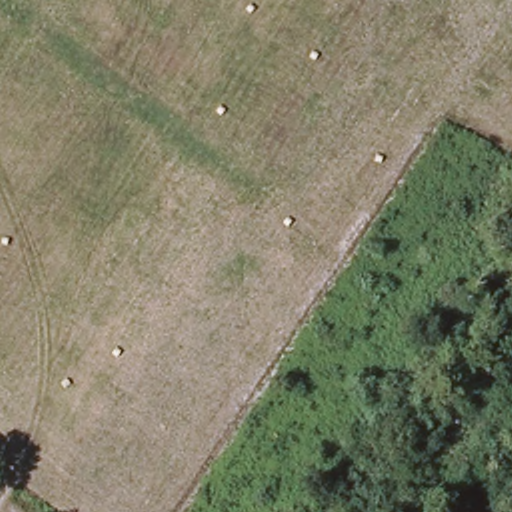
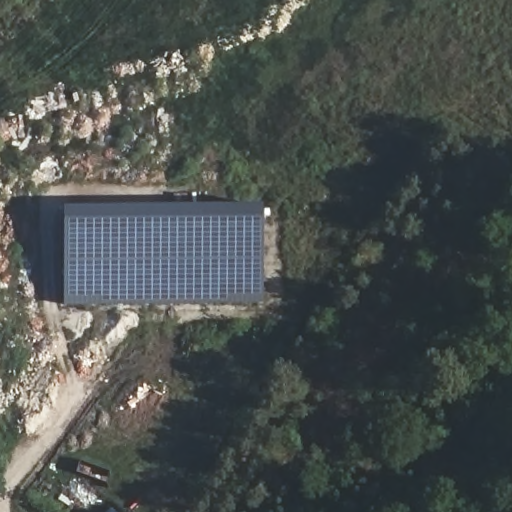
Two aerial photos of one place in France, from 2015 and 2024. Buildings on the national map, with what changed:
new [(64,207),(266,207),(266,305),(66,305),(64,207)]

